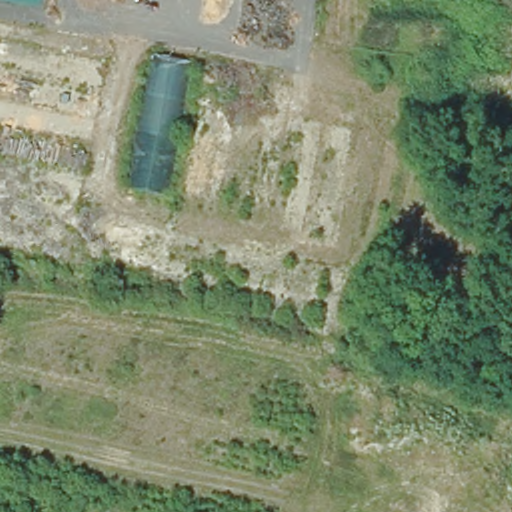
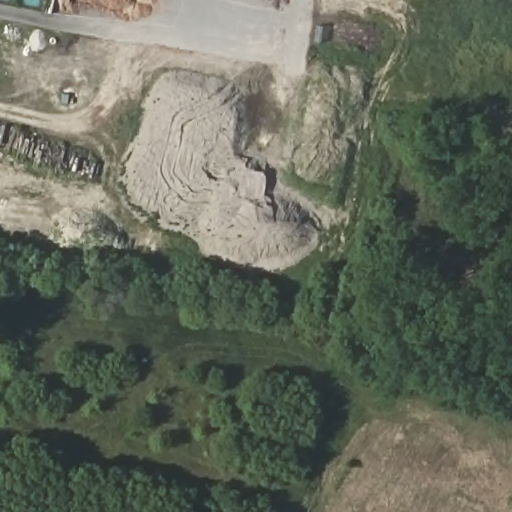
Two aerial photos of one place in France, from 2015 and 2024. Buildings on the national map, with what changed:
demolished [(170,197),(122,187),(146,51),(189,59),(170,197)]

